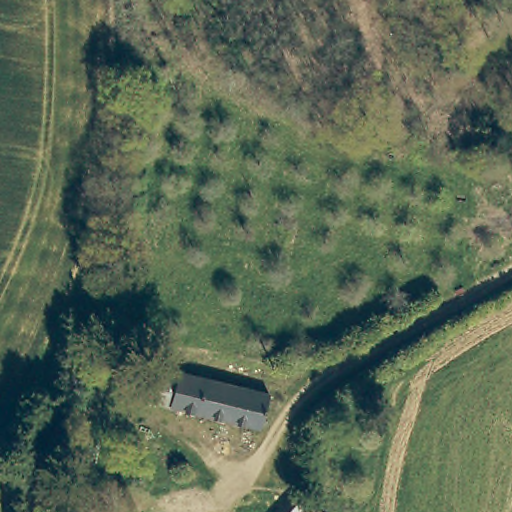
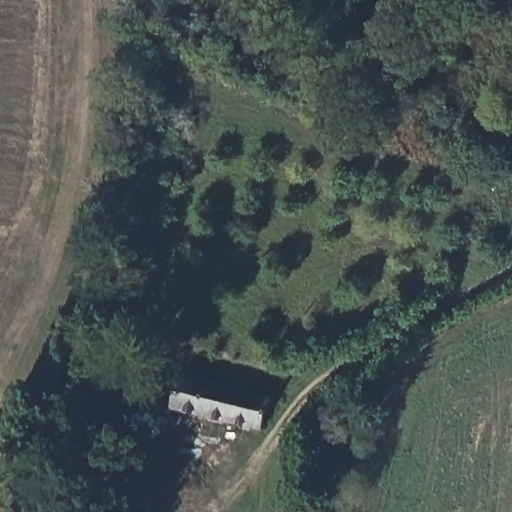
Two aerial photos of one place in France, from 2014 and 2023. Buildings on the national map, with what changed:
unchanged [(262,429),(172,407),(149,401),(160,363),(181,369),(271,393),(262,429)]
unchanged [(321,512),(299,512),(308,500),(321,512)]

